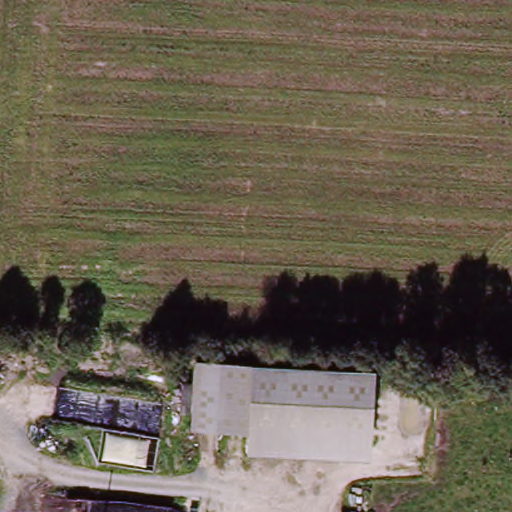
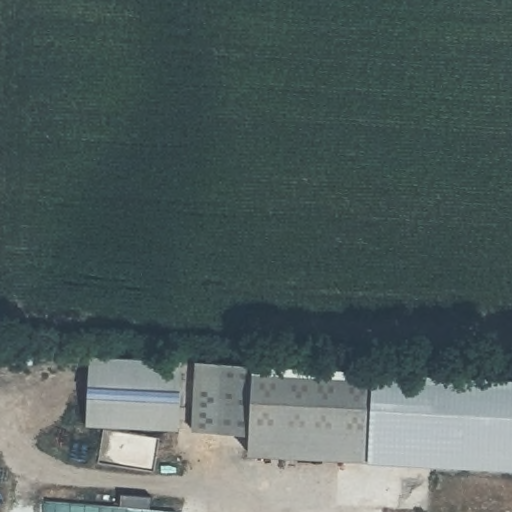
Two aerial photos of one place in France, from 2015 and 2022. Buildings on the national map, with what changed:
new [(90,355),(182,361),(178,431),(87,426),(90,355)]
unchanged [(380,369),(378,438),(257,433),(200,431),(202,362),(380,369)]
new [(512,465),(377,458),(378,438),(380,369),(512,376),(512,465)]
unchanged [(377,458),(256,453),(257,433),(378,438),(377,458)]

